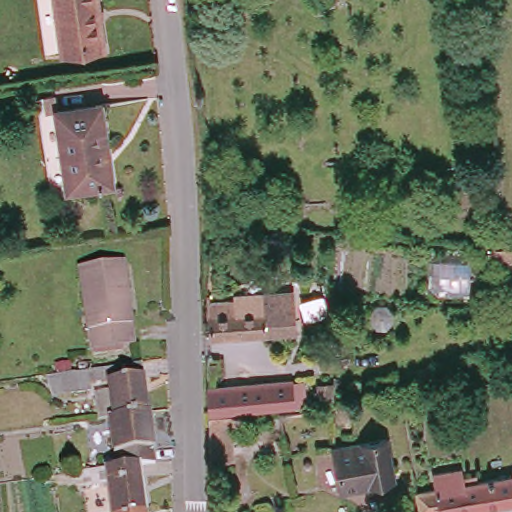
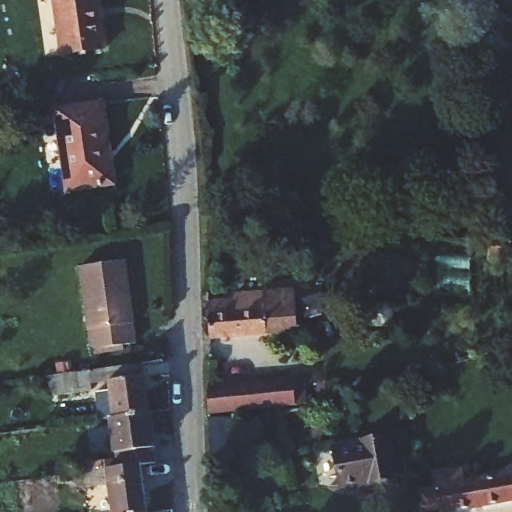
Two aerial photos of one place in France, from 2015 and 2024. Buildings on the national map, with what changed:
unchanged [(95,0),(102,49),(60,55),(52,0),(95,0)]
unchanged [(97,101),(108,181),(64,186),(54,107),(97,101)]
unchanged [(437,291),(437,242),(469,242),(469,291),(437,291)]
unchanged [(121,255),(132,338),(87,345),(75,262),(121,255)]
unchanged [(200,334),(201,325),(197,325),(197,316),(200,316),(200,297),(226,296),(227,293),(287,290),(291,330),(277,331),(200,334)]
unchanged [(132,357),(141,408),(104,413),(100,381),(67,386),(64,367),(132,357)]
unchanged [(237,403),(205,406),(205,380),(287,372),(290,398),(237,403)]
unchanged [(205,406),(237,403),(237,415),(226,416),(225,451),(205,455),(205,406)]
unchanged [(104,413),(141,408),(148,457),(130,460),(107,463),(101,414),(104,413)]
unchanged [(387,432),(393,470),(361,475),(361,479),(338,483),(331,442),(387,432)]
unchanged [(130,512),(102,512),(95,465),(107,463),(130,460),(137,511),(130,512)]
unchanged [(440,510),(439,506),(427,508),(428,511),(433,511),(433,512),(421,512),(416,484),(435,481),(432,466),(456,461),(462,460),(463,468),(475,467),(476,473),(512,467),(512,497),(440,510)]
unchanged [(138,512),(130,512),(137,511),(138,512)]

